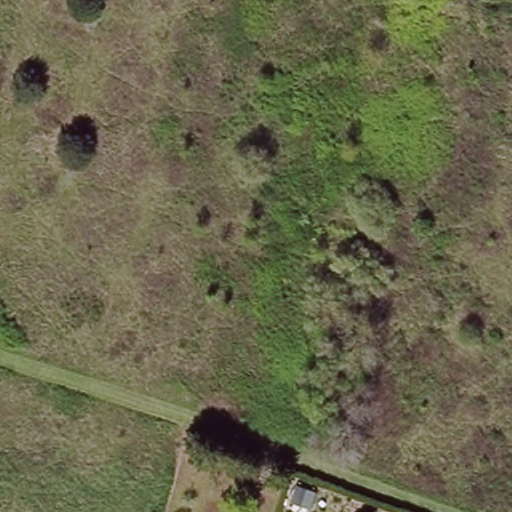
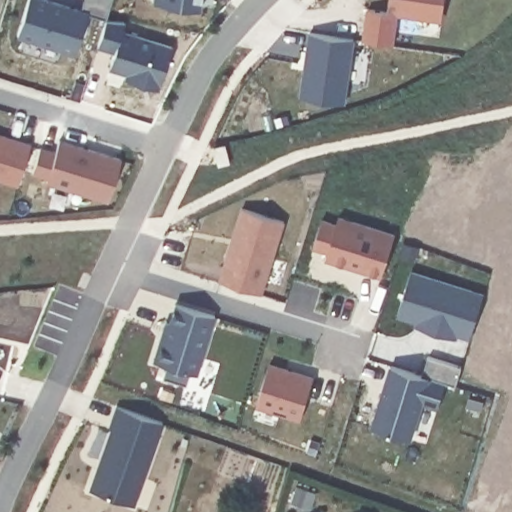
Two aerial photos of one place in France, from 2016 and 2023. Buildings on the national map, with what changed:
new [(87,14),(73,54),(17,36),(28,0),(53,0),(80,8),(82,0),(111,0),(106,19),(87,14)]
new [(197,9),(151,2),(151,0),(199,0),(197,9)]
new [(444,22),(397,16),(393,44),(363,40),(367,9),(390,12),(391,0),(445,0),(444,22)]
new [(124,24),(123,30),(172,47),(160,88),(122,78),(125,73),(105,67),(112,53),(97,48),(106,19),(124,24)]
new [(344,103),(302,97),(310,35),(352,40),(344,103)]
new [(17,185),(0,180),(0,133),(30,143),(17,185)]
new [(59,139),(120,159),(106,202),(45,183),(47,179),(31,175),(40,146),(55,152),(59,139)]
new [(262,292),(219,280),(241,208),(285,222),(262,292)]
new [(380,278),(324,260),(327,252),(312,248),(322,218),(336,223),(339,215),(395,234),(380,278)]
new [(470,339),(457,335),(456,338),(415,325),(417,321),(397,317),(412,272),(484,293),(470,339)]
new [(197,374),(189,371),(185,382),(162,376),(165,364),(152,360),(163,321),(170,320),(175,305),(214,317),(197,374)]
new [(454,385),(444,383),(437,409),(422,405),(412,439),(372,426),(390,366),(422,375),(429,355),(462,367),(454,385)]
new [(300,420),(255,406),(270,363),(314,377),(300,420)]
new [(134,504),(88,489),(110,427),(108,425),(115,406),(163,423),(134,504)]

